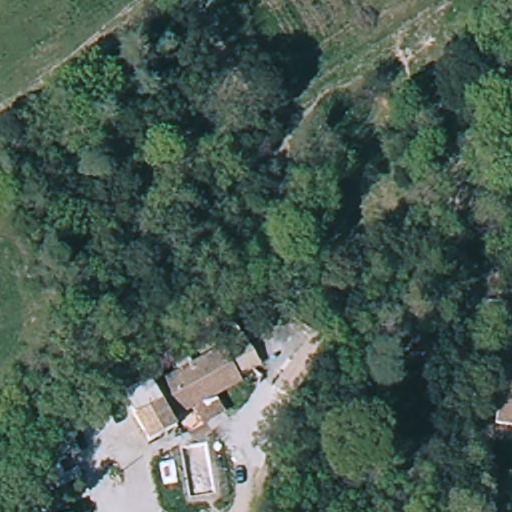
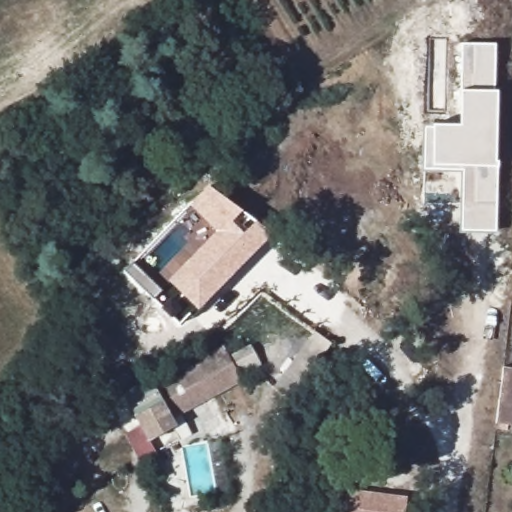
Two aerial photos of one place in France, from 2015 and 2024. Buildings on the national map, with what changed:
new [(461,171),(423,170),(423,125),(433,125),(459,125),(460,90),(462,44),(496,42),(494,90),(497,90),(495,161),(497,160),(496,234),(460,232),(461,171)]
new [(198,311),(167,280),(217,231),(191,206),(208,186),(242,210),(271,232),(198,311)]
new [(290,400),(274,388),(315,333),(330,345),(290,400)]
unchanged [(172,422),(155,390),(223,350),(242,381),(172,422)]
unchanged [(512,369),(512,427),(502,426),(505,368),(512,369)]
new [(405,512),(345,512),(348,492),(407,500),(405,512)]

